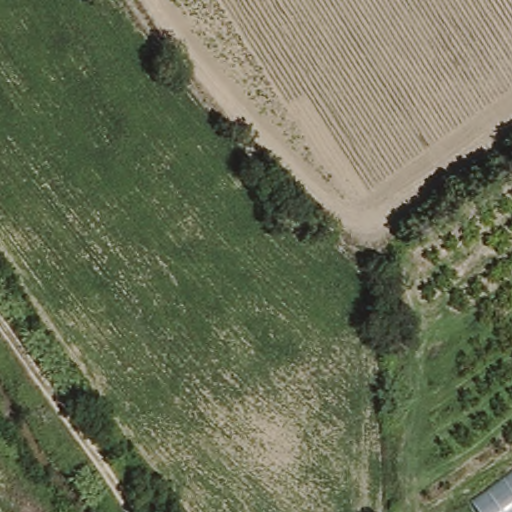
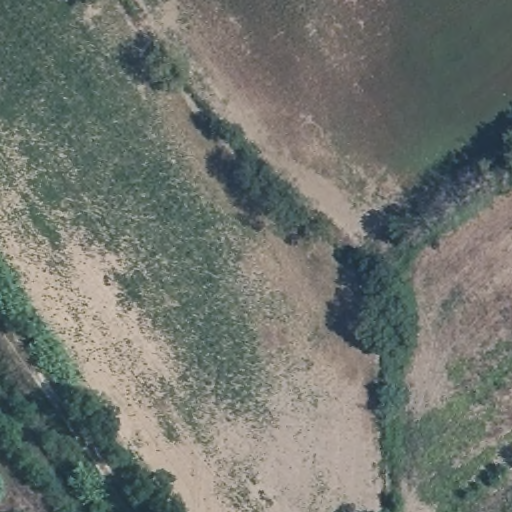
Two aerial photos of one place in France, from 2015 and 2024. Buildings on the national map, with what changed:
demolished [(467,502),(512,470),(512,512),(473,512),(467,502)]

